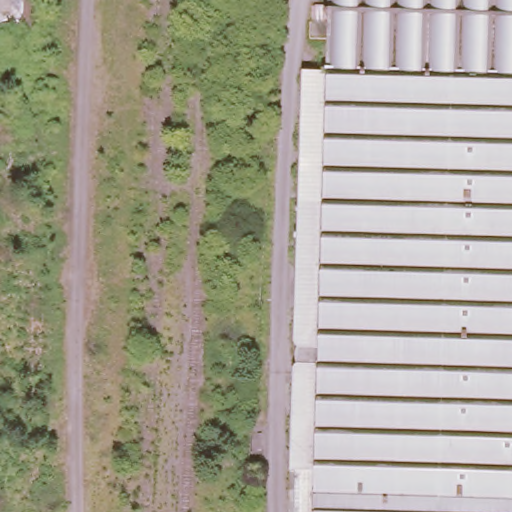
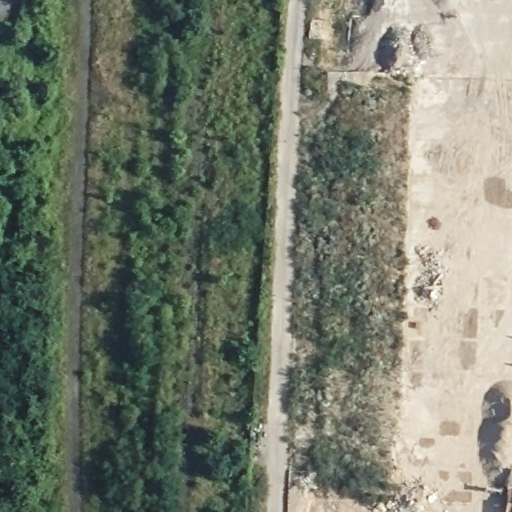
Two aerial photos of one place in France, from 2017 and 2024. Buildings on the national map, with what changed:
demolished [(295,474),(290,474),(300,74),(328,72),(329,0),(512,0),(512,512),(292,512),(295,474)]

